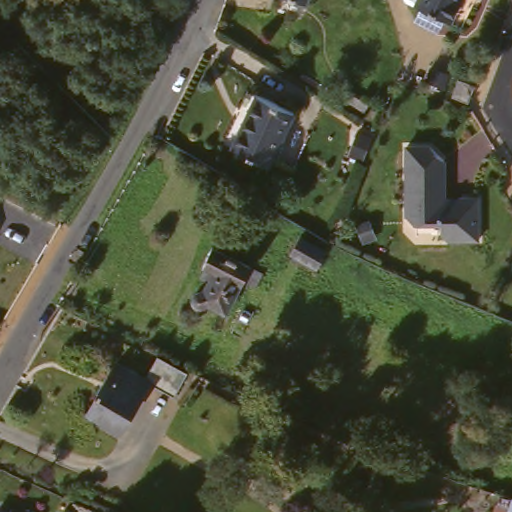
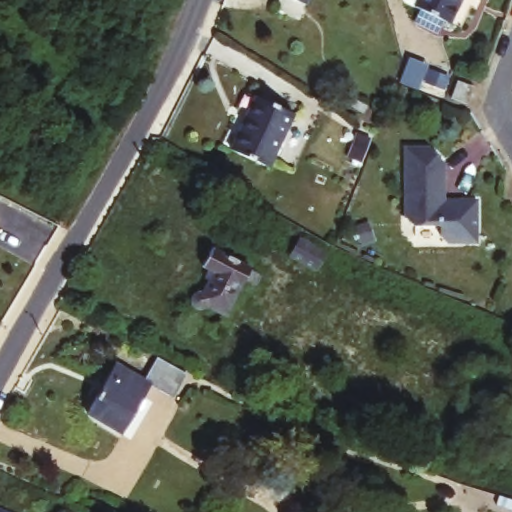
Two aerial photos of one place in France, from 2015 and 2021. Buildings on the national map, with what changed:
unchanged [(315,0),(314,6),(287,0),(315,0)]
unchanged [(463,0),(455,20),(425,6),(413,2),(413,0),(463,0)]
unchanged [(457,88),(464,70),(478,77),(472,96),(457,88)]
unchanged [(236,154),(257,99),(291,110),(271,166),(236,154)]
unchanged [(451,250),(440,237),(440,226),(412,223),(406,216),(411,145),(441,148),(450,171),(442,176),(442,199),(458,206),(469,197),(488,199),(487,251),(451,250)]
unchanged [(297,241),(326,251),(317,271),(291,261),(297,241)]
unchanged [(213,303),(200,305),(199,294),(208,292),(217,271),(205,264),(215,245),(255,265),(231,311),(213,303)]
unchanged [(193,374),(179,399),(154,385),(124,435),(89,414),(119,365),(147,379),(160,359),(193,374)]
unchanged [(2,512),(0,512),(0,511),(2,512)]

